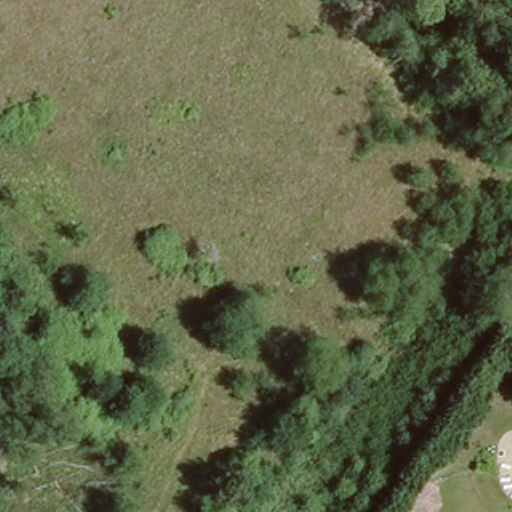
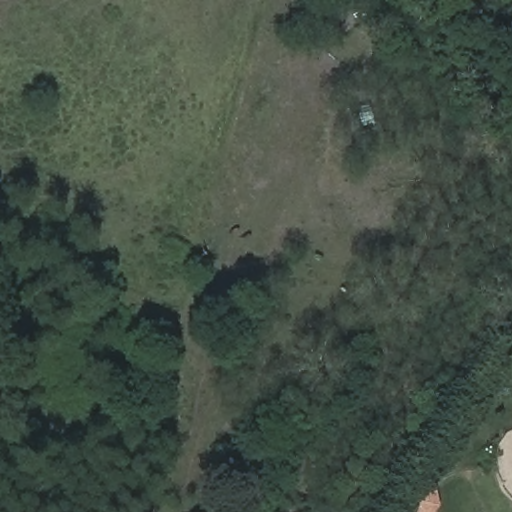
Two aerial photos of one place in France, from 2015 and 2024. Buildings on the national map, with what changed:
unchanged [(420,512),(392,512),(408,488),(420,500),(421,507),(420,512)]

